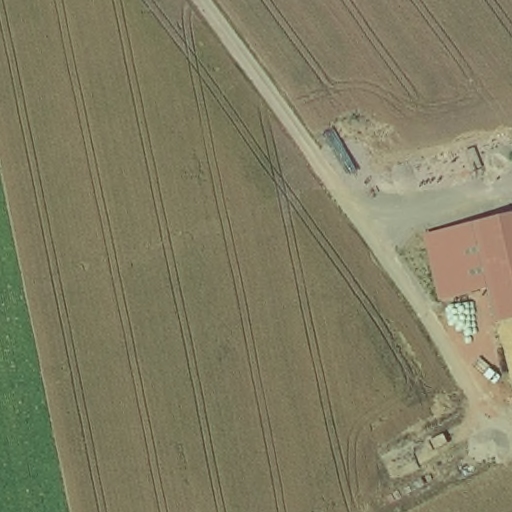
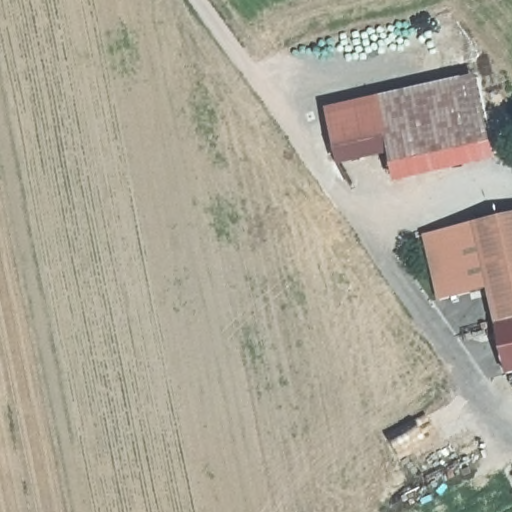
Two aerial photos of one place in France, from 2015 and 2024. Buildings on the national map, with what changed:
new [(477,77),(494,145),(498,161),(398,182),(394,167),(392,154),(389,139),(392,137),(383,97),(477,77)]
new [(392,137),(389,139),(392,154),(340,166),(328,109),(383,97),(392,137)]
unchanged [(499,322),(491,291),(441,301),(427,235),(512,216),(512,319),(499,322)]
new [(499,322),(512,319),(512,374),(510,375),(499,322)]

